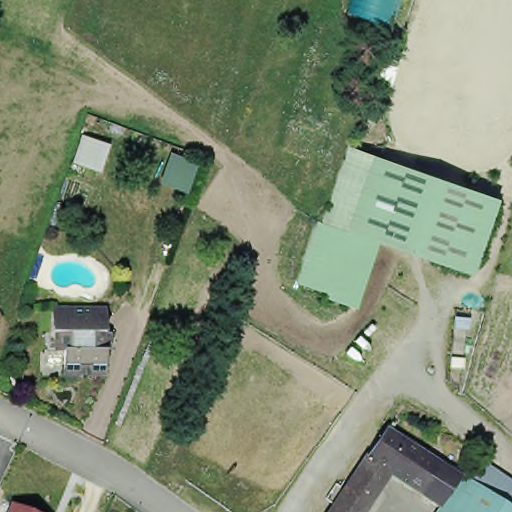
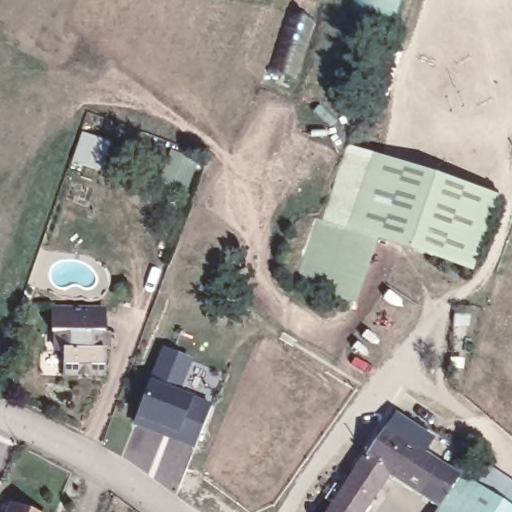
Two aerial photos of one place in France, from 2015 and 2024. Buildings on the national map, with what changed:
new [(392,26),(348,11),(351,0),(400,0),(392,26)]
unchanged [(356,92),(374,42),(405,55),(386,104),(356,92)]
unchanged [(110,140),(100,168),(73,159),(83,131),(110,140)]
unchanged [(472,273),(378,241),(356,307),(326,297),(326,292),(294,280),(315,221),(319,222),(346,144),(499,197),(472,273)]
unchanged [(199,162),(190,194),(163,183),(172,152),(199,162)]
unchanged [(113,332),(109,332),(108,352),(113,352),(113,373),(71,372),(71,350),(64,350),(64,332),(60,331),(60,310),(113,311),(113,332)]
new [(193,357),(182,390),(211,403),(194,450),(133,424),(161,346),(193,357)]
new [(422,457),(385,432),(398,415),(434,439),(422,457)]
unchanged [(359,471),(364,463),(385,432),(441,468),(457,480),(444,500),(433,492),(426,503),(419,500),(387,480),(384,485),(379,492),(365,512),(332,512),(355,478),(359,471)]
unchanged [(465,475),(472,466),(512,493),(512,512),(508,512),(461,481),(465,475)]
unchanged [(508,512),(440,512),(461,481),(508,512)]
unchanged [(31,512),(7,512),(10,503),(31,512)]

